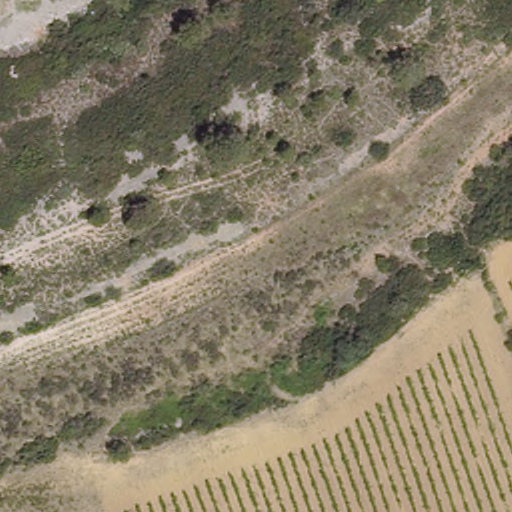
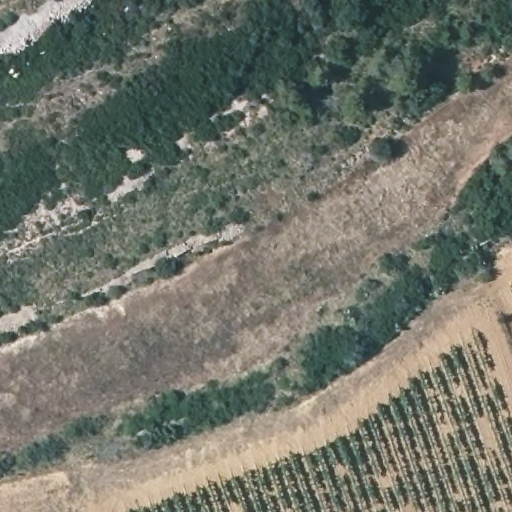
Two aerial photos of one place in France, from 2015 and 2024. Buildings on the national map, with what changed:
[]

